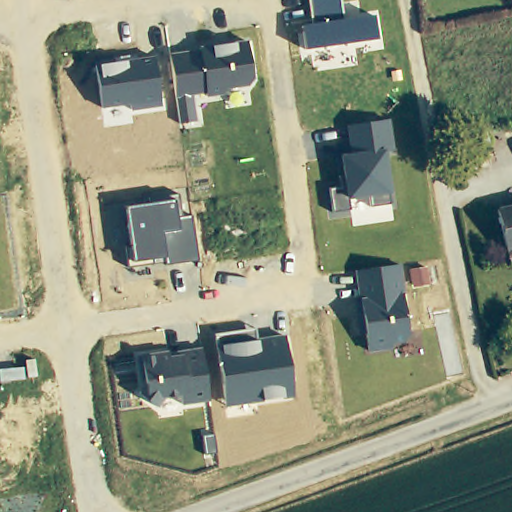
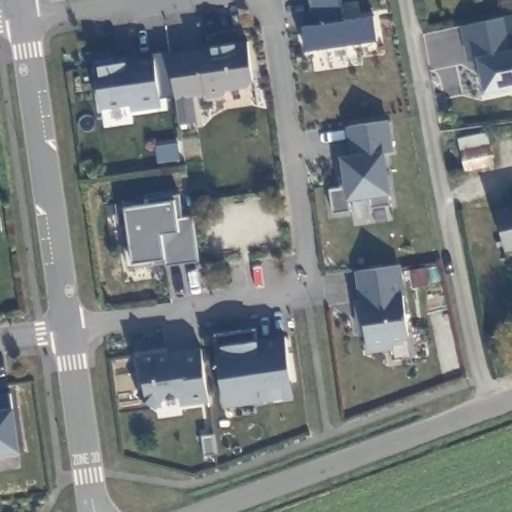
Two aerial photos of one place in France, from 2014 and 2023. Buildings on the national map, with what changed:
unchanged [(343,19),(374,14),(378,39),(305,49),(301,26),(312,24),(309,0),(340,0),(343,19)]
new [(486,95),(477,60),(467,63),(458,26),(512,13),(512,89),(486,95)]
unchanged [(198,48),(248,41),(253,78),(248,85),(206,90),(191,94),(195,122),(180,124),(168,52),(198,48)]
unchanged [(153,54),(160,105),(130,110),(129,104),(103,107),(95,62),(153,54)]
unchanged [(389,121),(394,152),(386,153),(390,191),(392,204),(371,206),(369,195),(347,198),(350,211),(334,213),(330,189),(345,186),(340,156),(349,155),(347,127),(389,121)]
unchanged [(147,203),(147,197),(179,192),(182,216),(191,215),(198,260),(165,265),(164,262),(129,265),(125,246),(130,244),(125,206),(147,203)]
unchanged [(508,244),(501,210),(512,207),(512,243),(508,244)]
unchanged [(398,264),(409,340),(389,343),(389,348),(367,351),(354,271),(398,264)]
demolished [(0,447),(0,280),(28,443),(0,447)]
unchanged [(215,334),(256,328),(256,339),(285,335),(293,396),(225,404),(216,347),(215,334)]
unchanged [(201,347),(208,400),(180,404),(178,396),(164,398),(156,408),(136,394),(143,385),(138,355),(201,347)]
new [(13,407),(20,449),(20,455),(0,458),(0,393),(8,392),(13,407)]

